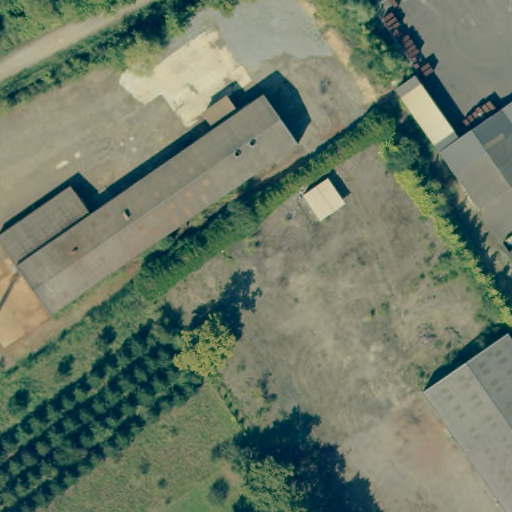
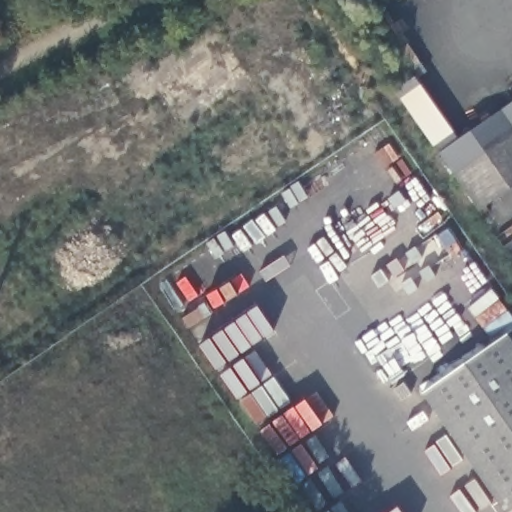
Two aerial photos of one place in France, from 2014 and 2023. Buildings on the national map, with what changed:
unchanged [(418,70),(461,133),(442,146),(399,82),(418,70)]
demolished [(86,217),(210,131),(199,116),(224,98),(235,114),(260,96),(294,146),(46,317),(0,251),(0,234),(66,188),(86,217)]
unchanged [(461,133),(512,99),(512,182),(481,203),(442,146),(461,133)]
demolished [(316,222),(297,202),(329,179),(342,202),(316,222)]
unchanged [(498,237),(512,227),(512,257),(498,237)]
unchanged [(426,391),(509,332),(512,336),(512,509),(508,512),(426,391)]

